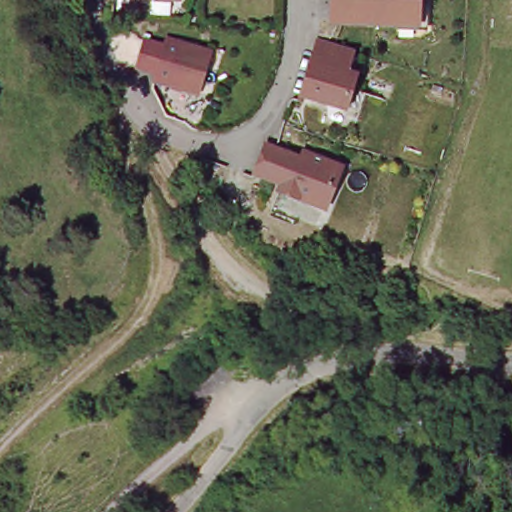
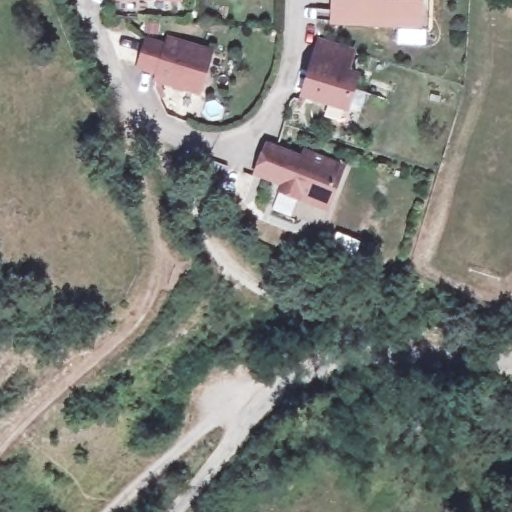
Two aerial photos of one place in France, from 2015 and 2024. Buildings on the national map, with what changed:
unchanged [(111,1),(111,0),(180,0),(180,4),(111,1)]
unchanged [(426,0),(425,26),(340,24),(341,0),(426,0)]
unchanged [(202,54),(190,94),(147,81),(150,71),(159,41),(202,54)]
unchanged [(343,75),(353,78),(342,111),(299,99),(316,45),(350,55),(343,75)]
unchanged [(311,161),(342,175),(328,209),(303,199),(300,205),(282,198),(284,192),(259,182),(270,153),(308,169),(311,161)]

